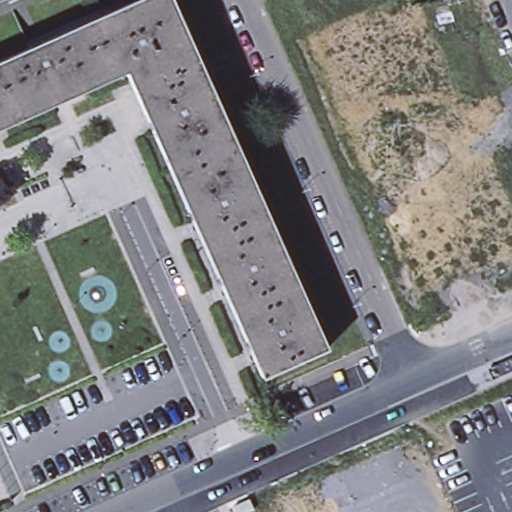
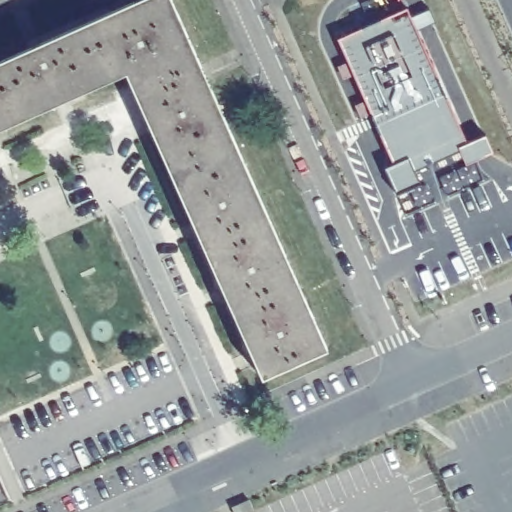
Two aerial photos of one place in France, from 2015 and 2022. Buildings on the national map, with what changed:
unchanged [(130,0),(174,0),(332,348),(264,378),(129,71),(0,130),(0,59),(130,0)]
new [(493,152),(466,164),(461,151),(415,171),(421,184),(397,195),(385,168),(393,164),(338,39),(407,8),(411,17),(430,9),(436,22),(417,31),(467,142),(486,134),(493,152)]
unchanged [(254,510),(249,512),(234,512),(232,507),(249,500),(254,510)]

